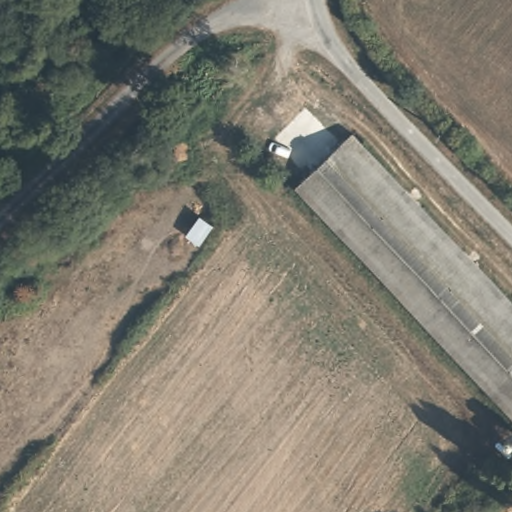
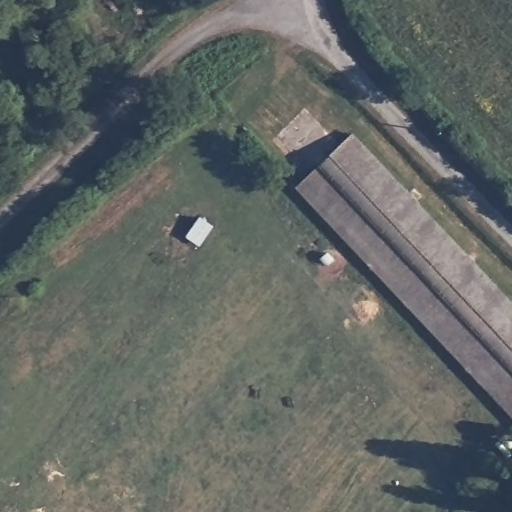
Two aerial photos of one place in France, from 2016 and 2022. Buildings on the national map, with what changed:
unchanged [(512,297),(512,408),(299,180),(355,129),(512,297)]

